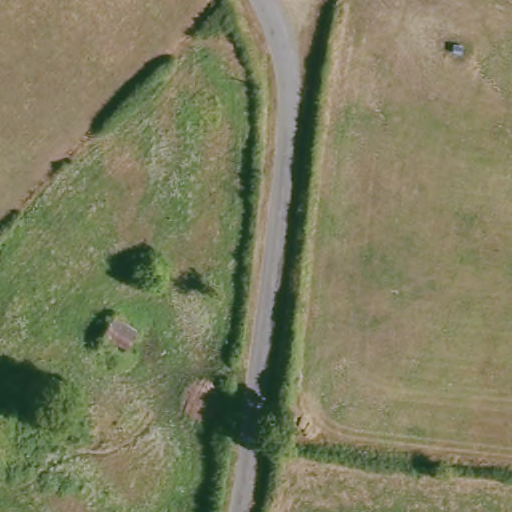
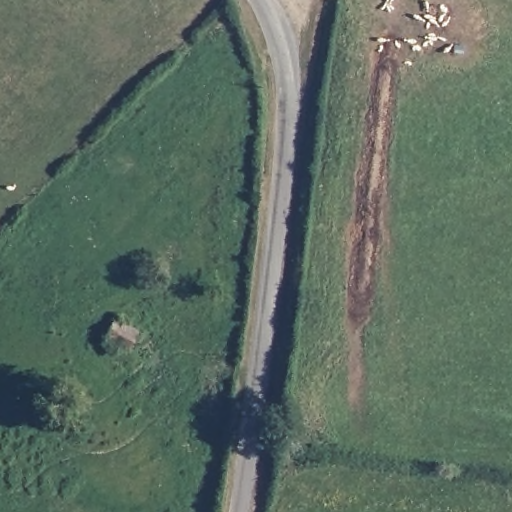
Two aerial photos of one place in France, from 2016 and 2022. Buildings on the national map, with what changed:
unchanged [(137,329),(126,350),(100,335),(112,314),(137,329)]

